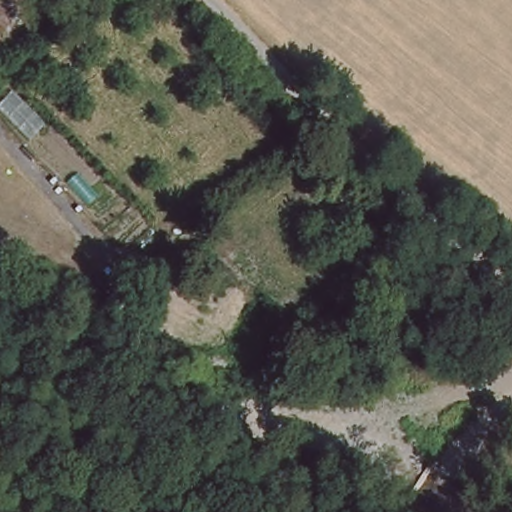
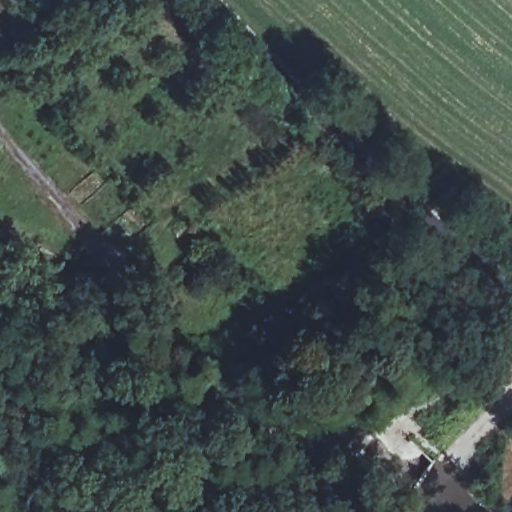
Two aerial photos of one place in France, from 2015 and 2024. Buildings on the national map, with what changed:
[]

